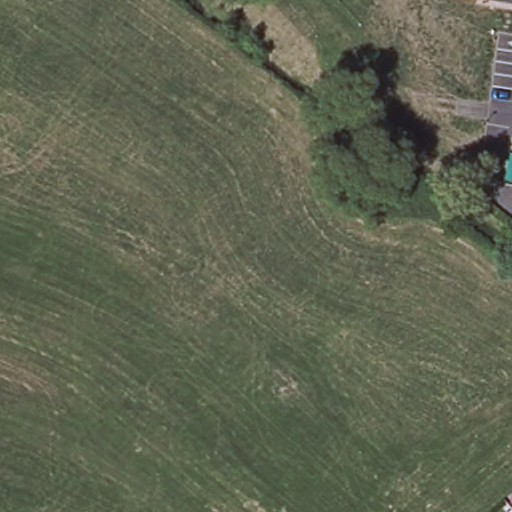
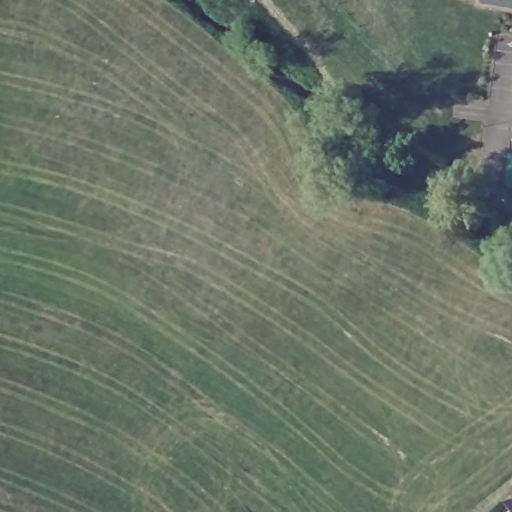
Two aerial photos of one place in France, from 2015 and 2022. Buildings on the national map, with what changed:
unchanged [(512,8),(478,0),(512,0),(512,8)]
unchanged [(508,150),(490,167),(482,158),(500,142),(508,150)]

